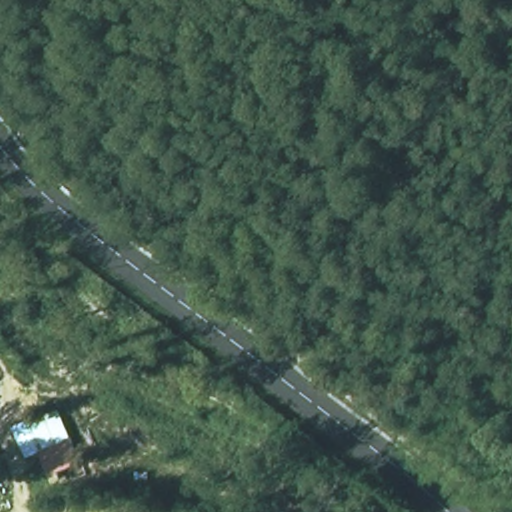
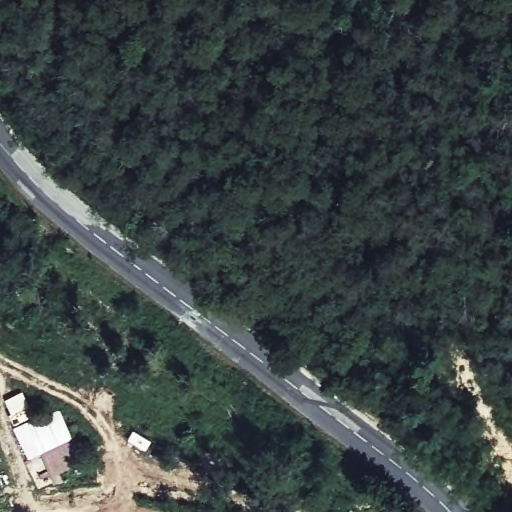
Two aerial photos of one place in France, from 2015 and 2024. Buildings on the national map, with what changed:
unchanged [(60,407),(86,471),(55,485),(41,453),(29,458),(14,427),(60,407)]

